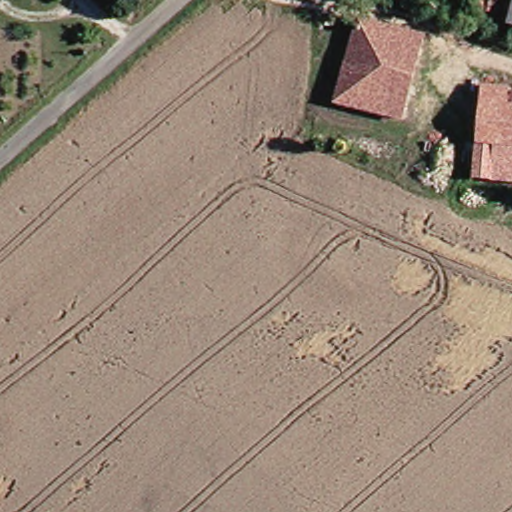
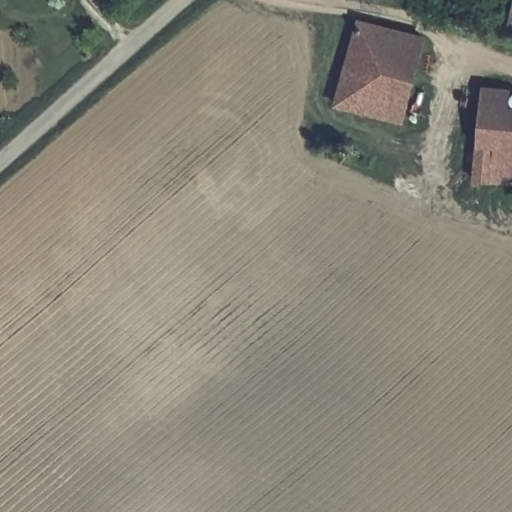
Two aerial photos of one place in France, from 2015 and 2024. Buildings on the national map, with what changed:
unchanged [(448,30),(450,16),(461,18),(458,31),(448,30)]
unchanged [(408,115),(343,100),(362,20),(427,34),(408,115)]
unchanged [(512,147),(503,146),(500,178),(483,177),(492,71),(512,73),(512,147)]
unchanged [(512,147),(512,178),(500,178),(503,146),(512,147)]

